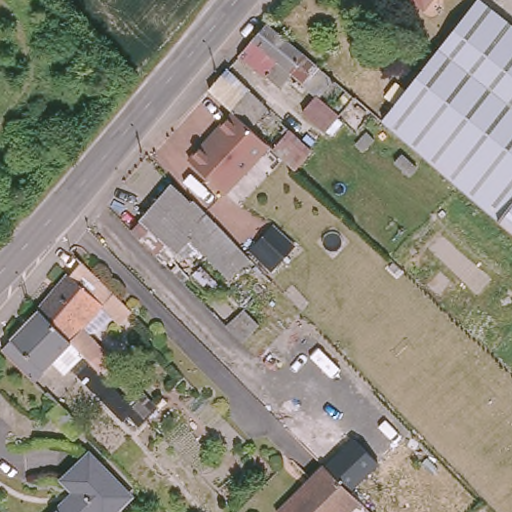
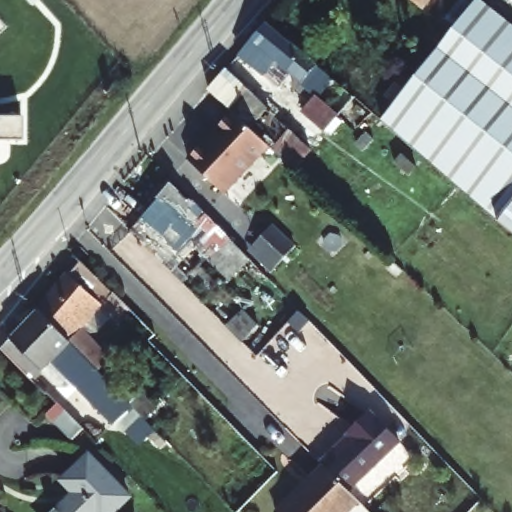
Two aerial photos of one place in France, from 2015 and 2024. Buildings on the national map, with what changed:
unchanged [(384,118),(479,0),(480,0),(512,25),(512,228),(501,219),(384,118)]
unchanged [(424,4),(418,0),(427,0),(424,4)]
unchanged [(308,100),(267,65),(255,78),(231,57),(256,26),(345,101),(315,137),(293,118),(308,100)]
unchanged [(295,169),(269,144),(260,135),(257,132),(234,111),(210,89),(226,70),(311,149),(295,169)]
unchanged [(257,132),(260,135),(269,144),(225,192),(189,159),(234,111),(257,132)]
new [(22,140),(0,136),(0,116),(23,117),(22,140)]
unchanged [(132,225),(173,177),(192,196),(194,194),(237,239),(250,253),(229,274),(190,235),(166,259),(132,225)]
unchanged [(295,247),(270,272),(250,253),(245,247),(268,223),(295,247)]
unchanged [(105,309),(96,319),(88,311),(77,323),(107,354),(94,366),(35,306),(70,263),(75,256),(126,306),(120,312),(114,318),(105,309)]
unchanged [(102,375),(125,398),(114,409),(64,360),(59,365),(47,353),(27,374),(0,348),(0,341),(35,306),(94,366),(102,375)]
unchanged [(242,341),(227,325),(244,309),(260,324),(242,341)]
unchanged [(58,402),(84,428),(72,438),(48,414),(58,402)]
unchanged [(350,433),(377,460),(349,490),(322,462),(350,433)]
unchanged [(59,474),(84,450),(124,490),(102,512),(95,512),(92,509),(89,512),(46,512),(71,487),(59,474)]
unchanged [(322,462),(358,499),(345,512),(275,512),(274,510),(322,462)]
unchanged [(2,512),(0,512),(0,510),(2,512)]

